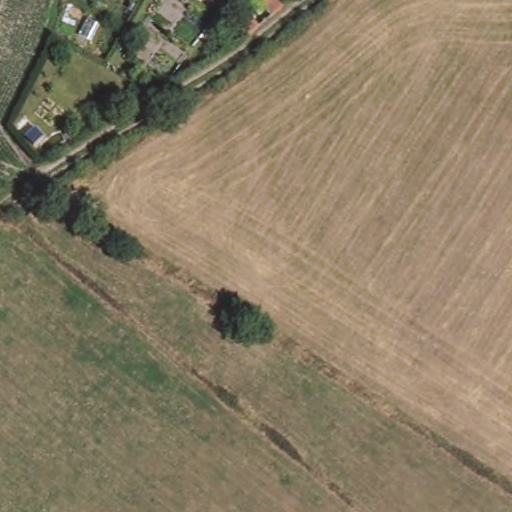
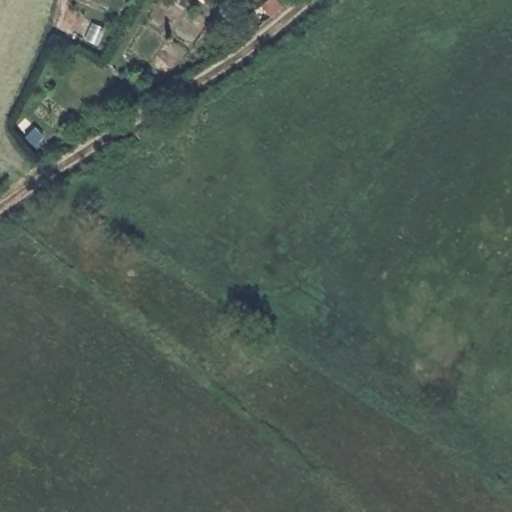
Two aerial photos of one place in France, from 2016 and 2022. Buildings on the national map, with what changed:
unchanged [(258,2),(261,0),(277,0),(281,4),(268,15),(258,2)]
unchanged [(234,23),(245,12),(257,26),(246,35),(245,37),(234,23)]

